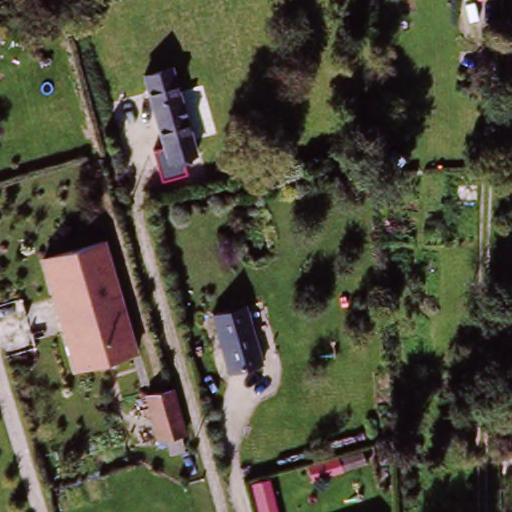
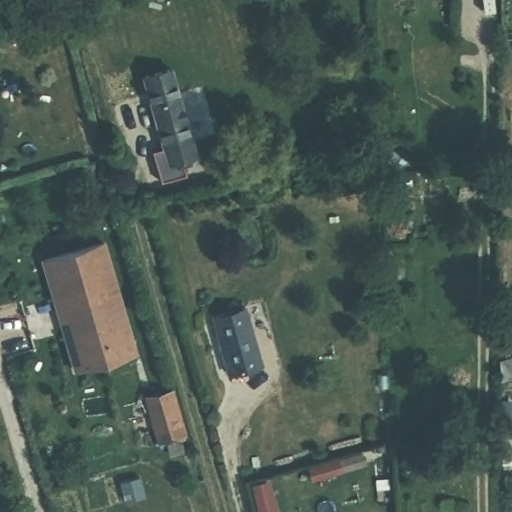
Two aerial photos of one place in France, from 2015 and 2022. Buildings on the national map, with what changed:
unchanged [(166,69),(188,153),(165,159),(143,75),(166,69)]
unchanged [(79,366),(50,256),(110,240),(140,351),(79,366)]
unchanged [(264,373),(240,378),(222,315),(245,308),(264,373)]
unchanged [(506,372),(512,370),(512,388),(505,391),(506,372)]
unchanged [(175,396),(185,435),(155,443),(145,405),(175,396)]

